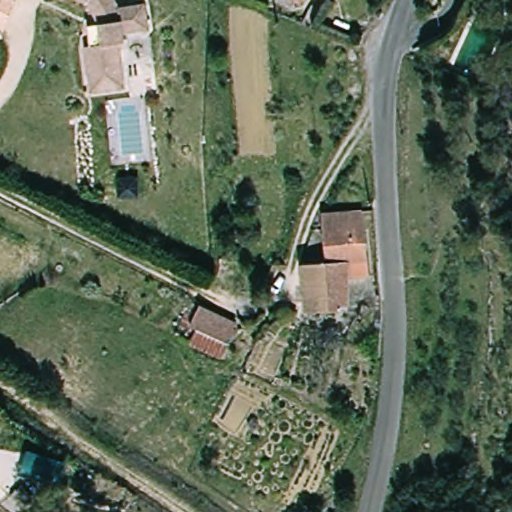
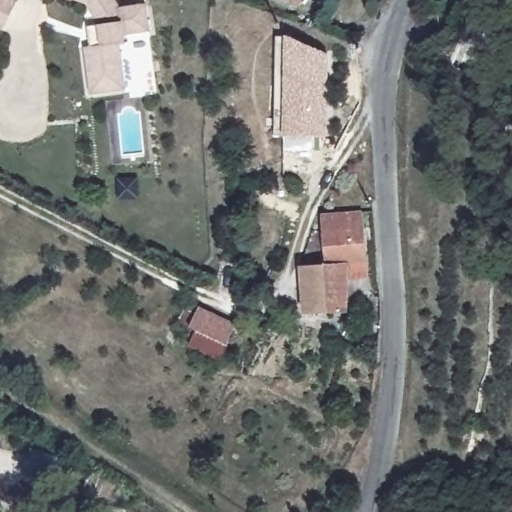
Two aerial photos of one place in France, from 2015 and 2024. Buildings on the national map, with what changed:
new [(18,1),(3,30),(0,28),(0,0),(16,0),(18,1)]
unchanged [(116,0),(118,4),(133,0),(144,0),(148,22),(123,27),(125,36),(121,37),(131,82),(98,90),(88,45),(92,44),(88,24),(99,21),(90,1),(86,0),(116,0)]
unchanged [(304,0),(303,3),(297,0),(304,0)]
new [(283,36),(326,55),(324,138),(281,136),(283,36)]
unchanged [(346,275),(345,306),(304,310),(299,262),(324,260),(319,212),(361,208),(366,273),(346,275)]
unchanged [(238,321),(228,340),(230,340),(221,357),(192,342),(200,326),(192,322),(190,327),(181,322),(191,301),(201,306),(202,304),(238,321)]

